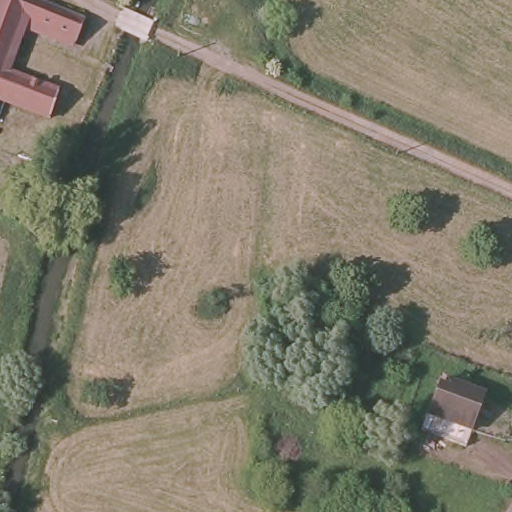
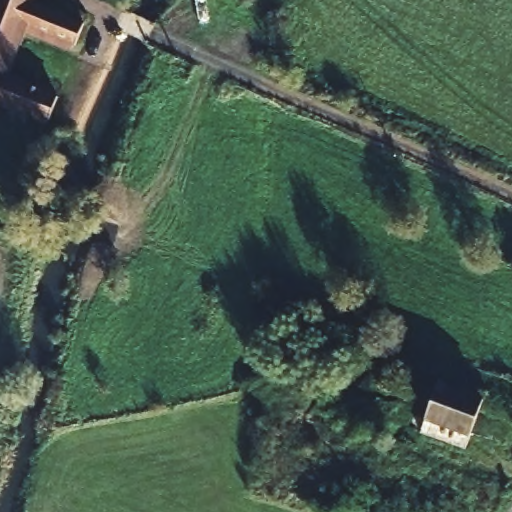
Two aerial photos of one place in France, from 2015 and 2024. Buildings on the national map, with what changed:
unchanged [(82,19),(74,42),(24,22),(5,72),(59,94),(50,117),(6,99),(0,114),(0,0),(35,0),(82,19)]
unchanged [(482,397),(461,448),(420,433),(439,381),(482,397)]

